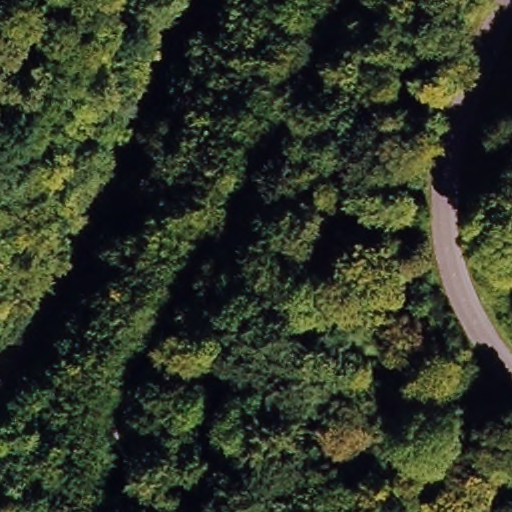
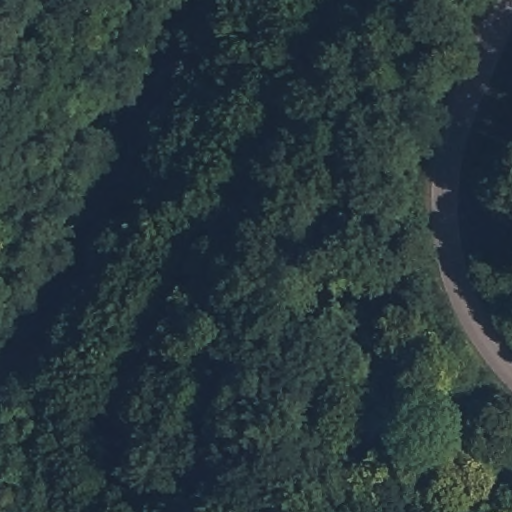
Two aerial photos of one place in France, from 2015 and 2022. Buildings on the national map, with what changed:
unchanged [(151,194),(141,217),(124,211),(133,187),(151,194)]

